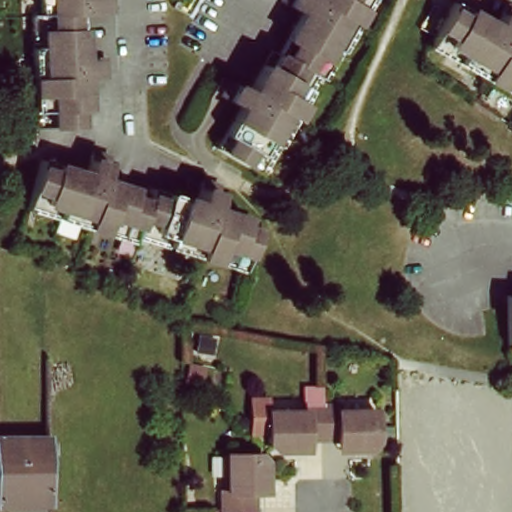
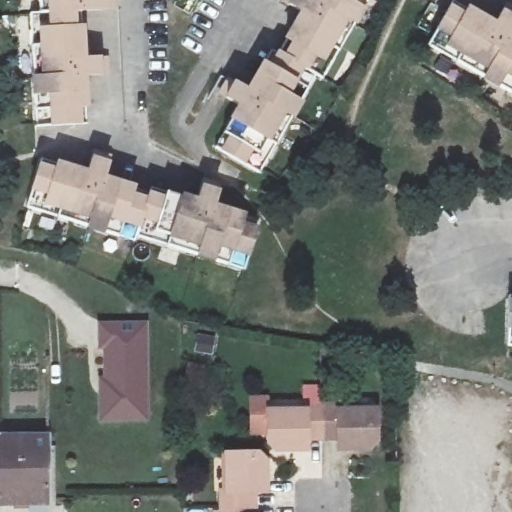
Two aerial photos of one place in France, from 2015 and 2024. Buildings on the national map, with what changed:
unchanged [(33,0),(99,0),(100,10),(78,11),(34,13),(33,0)]
unchanged [(304,13),(293,6),(296,0),(371,0),(326,82),(319,78),(280,56),(304,13)]
unchanged [(428,40),(451,0),(467,0),(494,16),(502,4),(512,11),(512,26),(511,27),(512,28),(512,90),(428,40)]
unchanged [(78,11),(80,58),(95,57),(96,77),(82,78),(83,123),(30,125),(23,14),(34,13),(78,11)]
unchanged [(319,78),(262,179),(218,153),(241,110),(228,102),(236,88),(250,95),(274,53),(280,56),(319,78)]
unchanged [(134,243),(25,210),(38,161),(83,174),(88,159),(105,165),(100,179),(148,193),(136,236),(134,243)]
unchanged [(148,193),(150,185),(196,199),(201,184),(218,190),(215,203),(259,216),(243,266),(136,236),(148,193)]
unchanged [(505,352),(504,301),(512,301),(512,352),(505,352)]
new [(105,380),(105,348),(100,348),(98,325),(144,325),(146,419),(101,420),(100,395),(100,380),(105,380)]
unchanged [(375,436),(364,445),(346,445),(346,435),(316,435),(289,436),(289,446),(271,446),(261,433),(261,410),(303,410),(303,403),(316,403),(334,403),(335,409),(374,408),(375,436)]
unchanged [(48,461),(45,461),(46,503),(0,504),(0,439),(48,438),(48,461)]
unchanged [(257,456),(258,478),(249,478),(249,503),(249,512),(216,512),(216,504),(216,489),(221,489),(221,451),(251,450),(257,456)]

